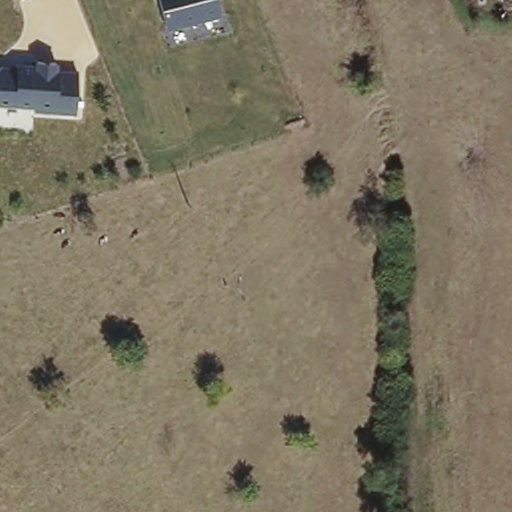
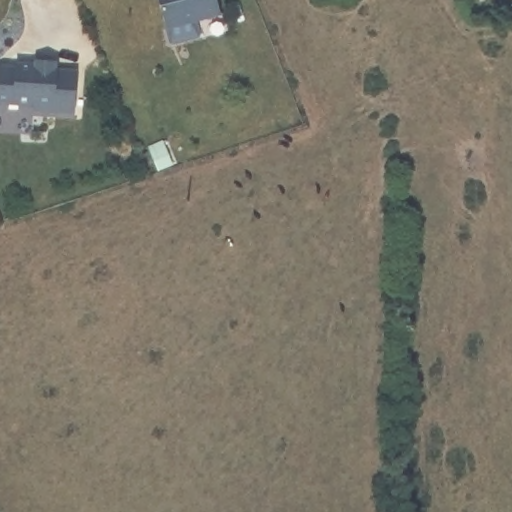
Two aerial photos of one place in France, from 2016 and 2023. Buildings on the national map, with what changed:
unchanged [(158,0),(217,0),(221,14),(166,29),(158,0)]
unchanged [(28,51),(49,55),(50,63),(79,72),(70,117),(0,105),(0,62),(24,65),(28,51)]

